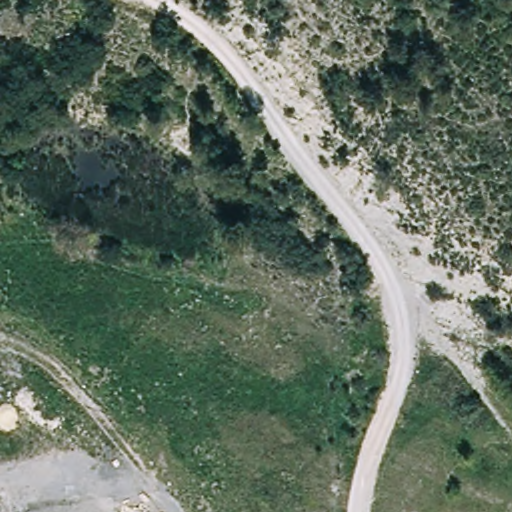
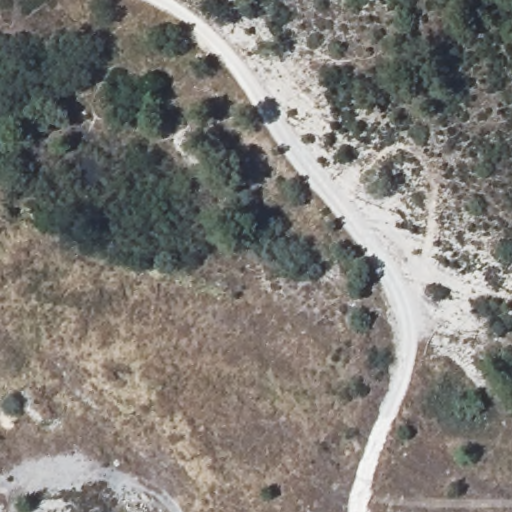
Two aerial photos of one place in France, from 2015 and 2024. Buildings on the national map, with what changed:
[]

